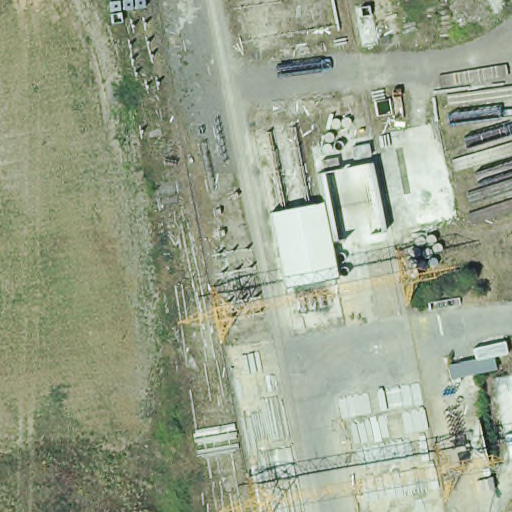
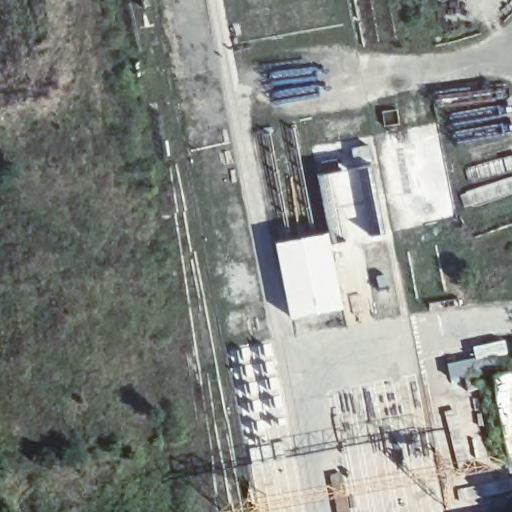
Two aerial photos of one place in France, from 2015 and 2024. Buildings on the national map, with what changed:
new [(327,230),(342,306),(288,317),(272,240),(327,230)]
unchanged [(493,373),(470,378),(473,397),(462,399),(458,379),(448,382),(445,365),(490,357),(493,373)]

